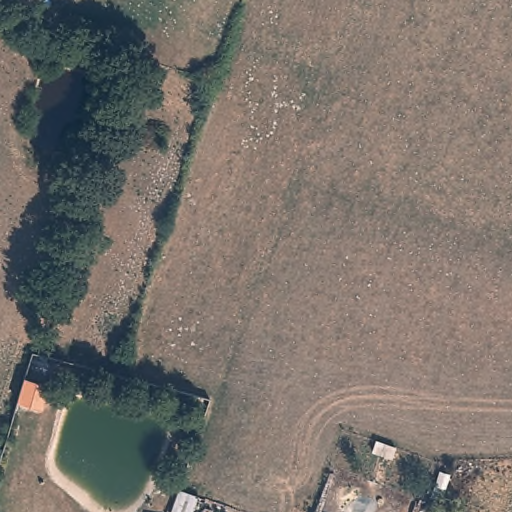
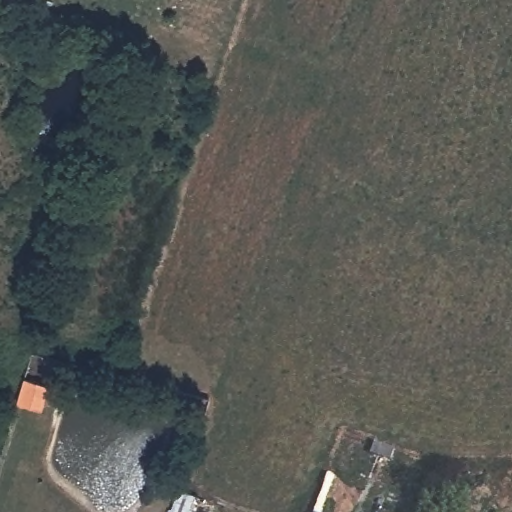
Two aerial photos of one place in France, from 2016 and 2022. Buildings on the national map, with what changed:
unchanged [(53,387),(45,410),(22,402),(29,379),(53,387)]
unchanged [(176,490),(198,497),(193,512),(170,512),(176,490)]

